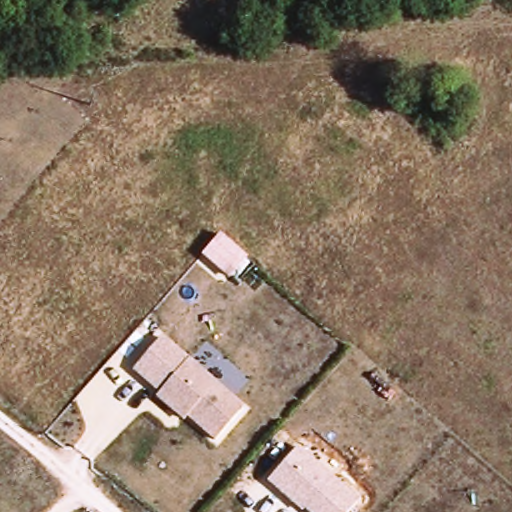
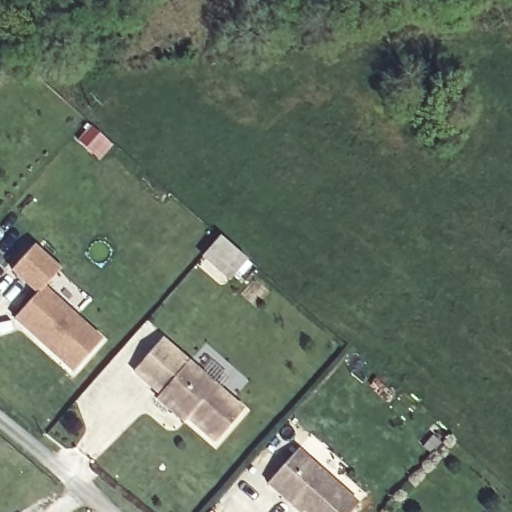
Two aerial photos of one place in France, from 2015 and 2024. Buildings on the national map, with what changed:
new [(13,319),(35,295),(10,272),(33,245),(60,269),(44,287),(101,339),(71,371),(13,319)]
unchanged [(188,418),(183,423),(157,401),(160,396),(134,373),(165,337),(246,408),(217,442),(188,418)]
unchanged [(362,503),(354,512),(308,512),(302,507),(298,510),(268,484),(300,448),(362,503)]

